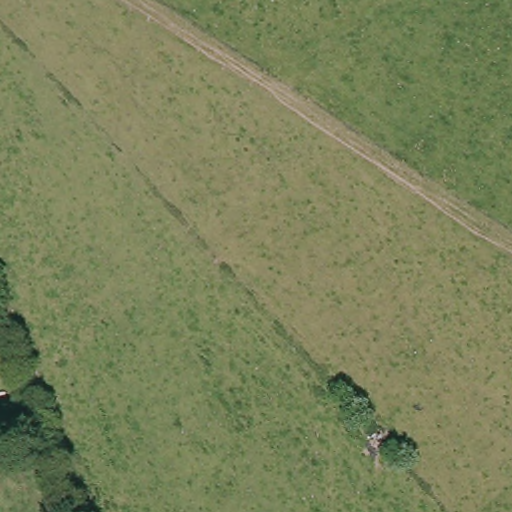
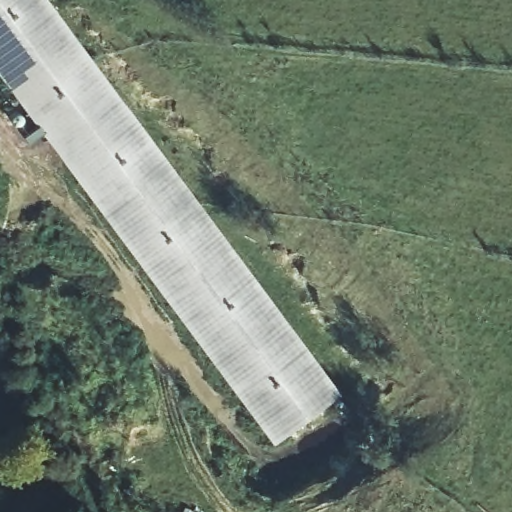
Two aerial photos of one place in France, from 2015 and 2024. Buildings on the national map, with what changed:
new [(346,390),(276,447),(0,82),(0,0),(50,0),(346,390)]

